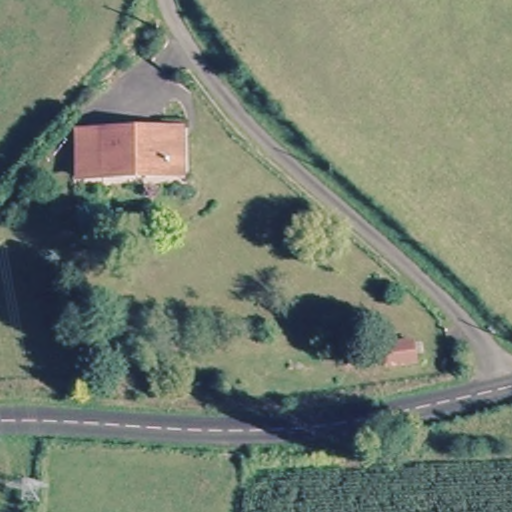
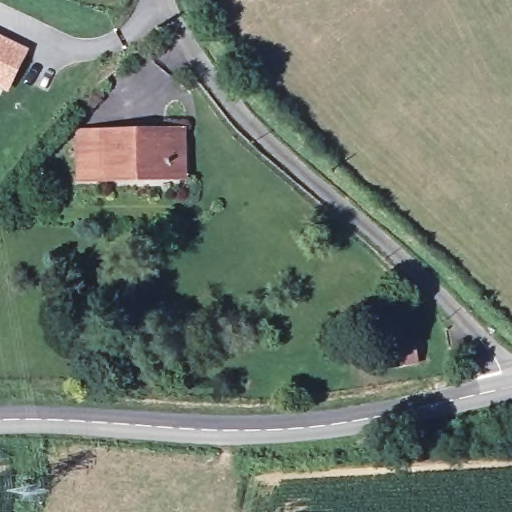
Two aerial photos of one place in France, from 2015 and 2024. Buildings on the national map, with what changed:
new [(30,48),(10,92),(0,88),(0,34),(30,48)]
unchanged [(110,173),(108,132),(172,129),(186,129),(187,172),(174,173),(110,176),(110,173)]
unchanged [(83,174),(81,133),(108,132),(110,173),(83,174)]
unchanged [(418,367),(385,369),(383,341),(417,340),(418,367)]

